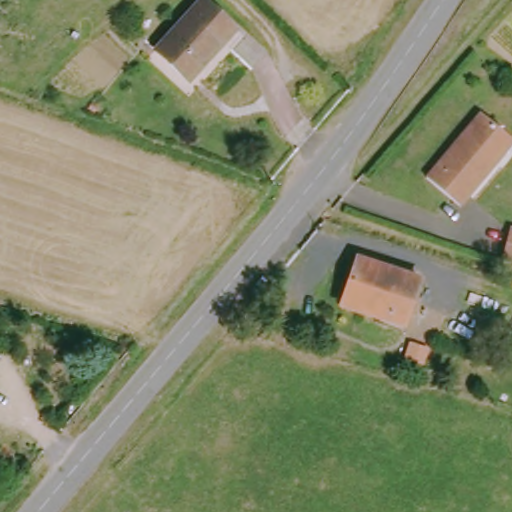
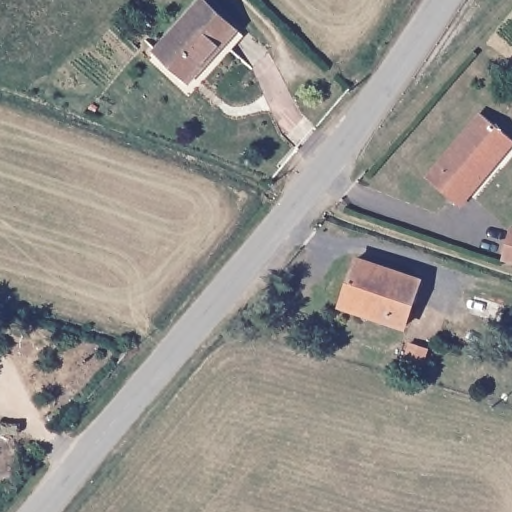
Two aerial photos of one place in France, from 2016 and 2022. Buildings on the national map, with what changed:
unchanged [(203,0),(236,31),(188,82),(158,51),(202,0),(203,0)]
unchanged [(422,178),(482,113),(506,137),(512,143),(512,145),(492,167),(456,209),(422,178)]
unchanged [(501,266),(509,235),(512,236),(512,269),(501,266)]
unchanged [(413,283),(402,331),(379,326),(380,318),(336,307),(348,266),(413,283)]
unchanged [(469,315),(476,297),(510,307),(504,325),(469,315)]

